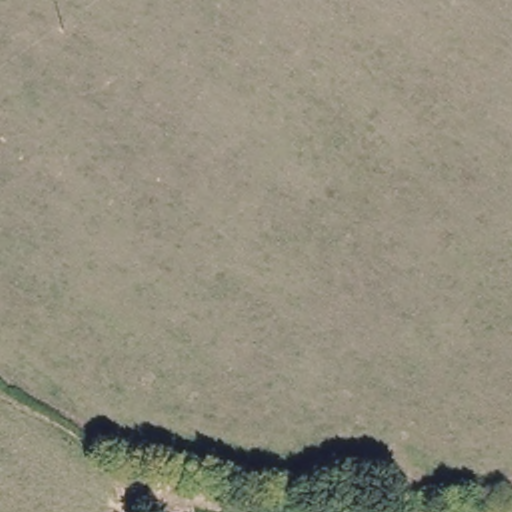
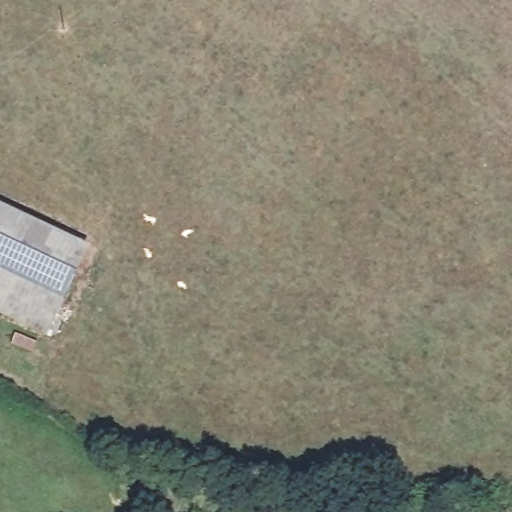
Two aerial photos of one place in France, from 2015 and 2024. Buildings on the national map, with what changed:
new [(0,206),(89,247),(46,340),(0,318),(0,206)]

